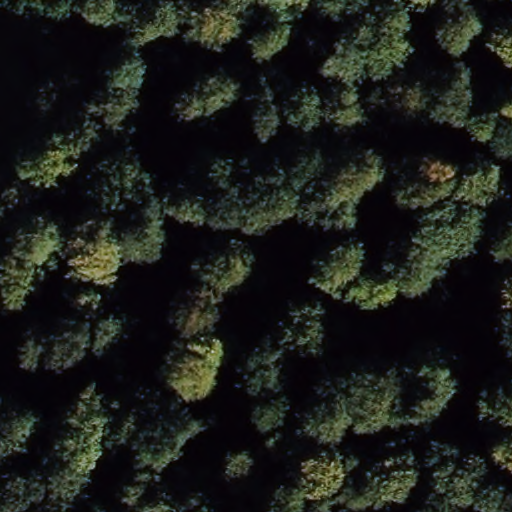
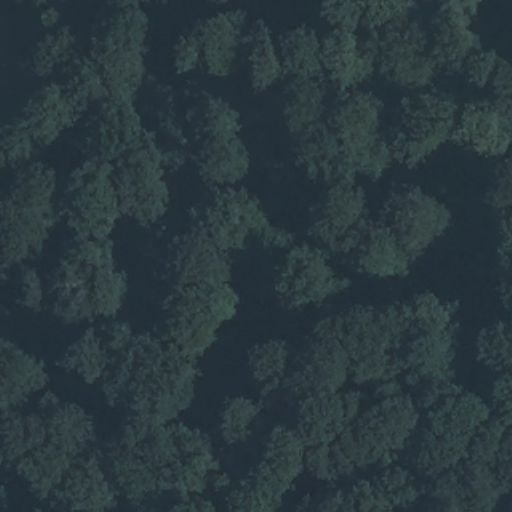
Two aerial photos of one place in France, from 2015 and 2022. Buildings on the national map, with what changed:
[]

